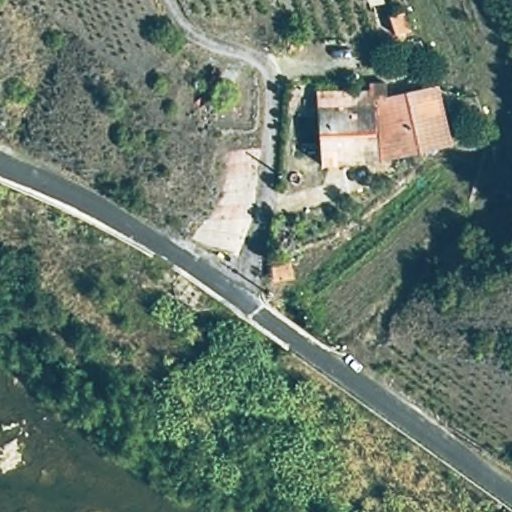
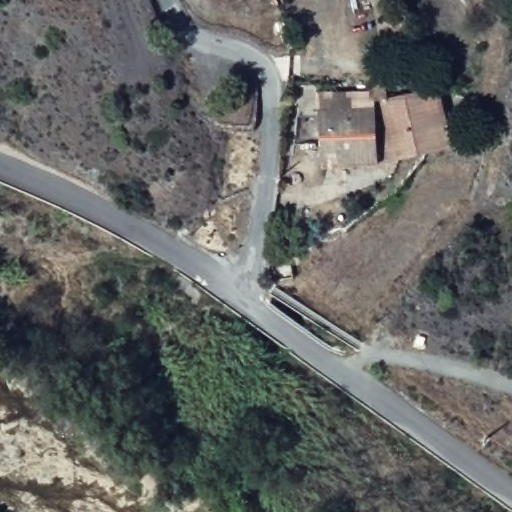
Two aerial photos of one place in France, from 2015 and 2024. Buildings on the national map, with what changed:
unchanged [(374,90),(378,89),(439,78),(457,146),(386,161),(374,90)]
unchanged [(371,165),(318,165),(315,97),(374,90),(386,161),(371,165)]

